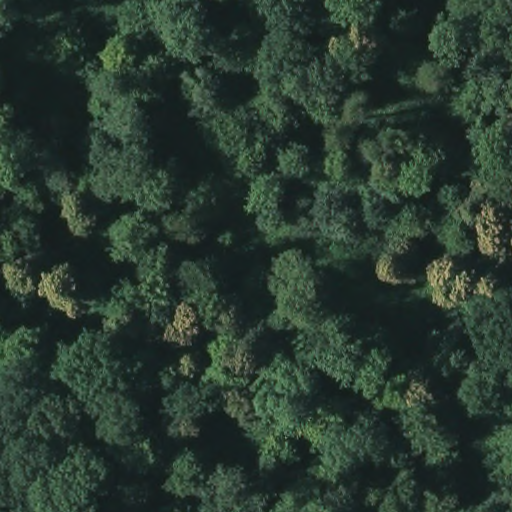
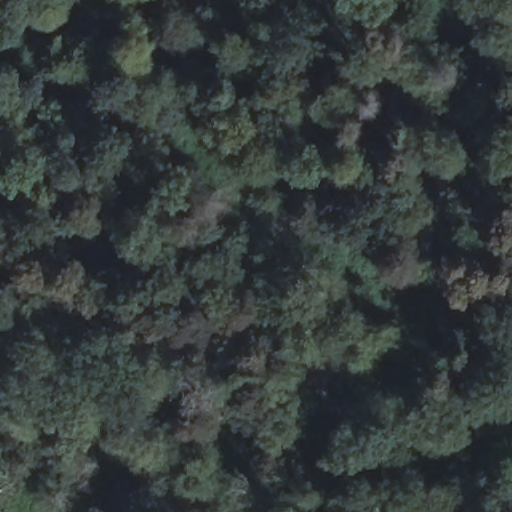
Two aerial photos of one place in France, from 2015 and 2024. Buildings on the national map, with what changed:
unchanged [(6,463),(0,460),(0,399),(15,403),(5,453),(6,463)]

